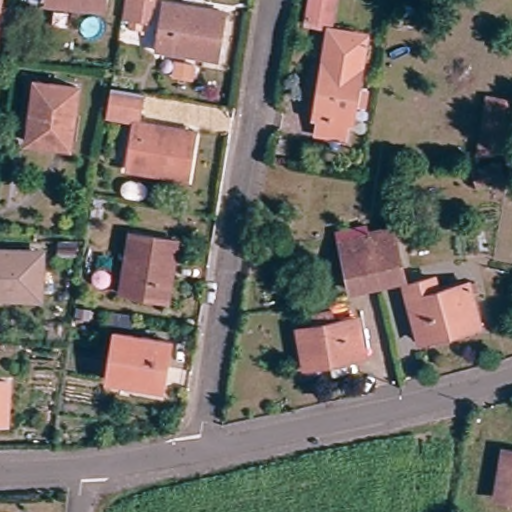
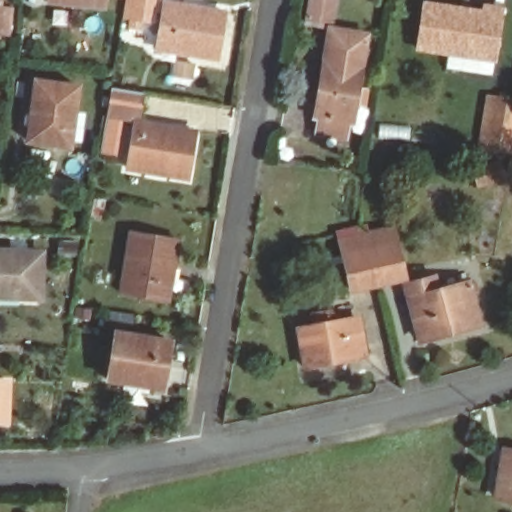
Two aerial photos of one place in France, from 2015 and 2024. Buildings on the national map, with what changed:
unchanged [(87,4),(88,0),(106,0),(104,9),(87,4)]
unchanged [(117,9),(119,0),(139,0),(136,13),(117,9)]
unchanged [(305,14),(307,0),(330,0),(327,17),(305,14)]
new [(422,0),(429,0),(480,7),(481,1),(506,5),(497,63),(493,77),(445,69),(447,56),(413,51),(422,0)]
unchanged [(217,59),(202,56),(203,50),(180,45),(178,52),(159,48),(169,5),(227,15),(217,59)]
unchanged [(355,84),(365,86),(362,102),(352,101),(349,119),(343,117),(341,131),(317,127),(319,113),(313,112),(321,59),(322,59),(327,27),(362,32),(355,84)]
unchanged [(72,142),(32,138),(38,81),(79,86),(72,142)]
unchanged [(132,115),(125,114),(125,119),(106,117),(110,94),(135,96),(132,115)]
unchanged [(500,152),(475,157),(485,97),(512,100),(512,134),(511,146),(500,152)]
unchanged [(191,174),(172,171),(174,163),(150,160),(147,171),(131,167),(140,120),(199,128),(191,174)]
unchanged [(341,226),(362,222),(367,222),(371,232),(376,234),(396,230),(398,244),(406,281),(381,286),(353,290),(346,251),(341,226)]
unchanged [(165,281),(174,282),(171,299),(122,292),(132,231),(181,237),(178,256),(169,255),(165,281)]
unchanged [(67,251),(52,251),(52,237),(68,237),(67,251)]
unchanged [(0,290),(0,250),(45,250),(44,290),(0,290)]
unchanged [(482,330),(424,343),(412,284),(436,278),(437,292),(478,282),(482,297),(476,297),(482,330)]
unchanged [(368,355),(309,367),(301,331),(316,327),(313,317),(331,313),(333,323),(359,318),(368,355)]
unchanged [(171,383),(156,382),(157,375),(135,373),(134,381),(113,379),(119,332),(177,336),(171,383)]
unchanged [(0,420),(0,379),(12,379),(11,420),(0,420)]
unchanged [(498,494),(506,445),(512,445),(512,496),(498,494)]

